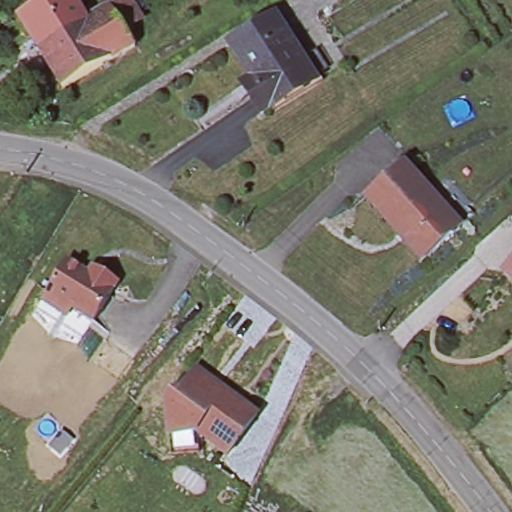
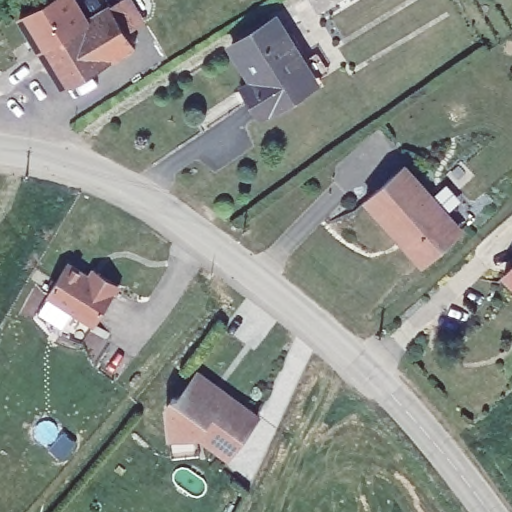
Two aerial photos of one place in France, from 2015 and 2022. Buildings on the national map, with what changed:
unchanged [(46,0),(74,0),(84,16),(86,20),(37,50),(17,17),(46,0)]
unchanged [(107,2),(112,0),(130,0),(140,16),(122,26),(133,44),(62,89),(37,50),(86,20),(84,16),(107,2)]
unchanged [(330,91),(279,122),(276,117),(267,123),(248,93),(258,88),(235,52),(280,25),(299,56),(305,52),(330,91)]
unchanged [(408,165),(438,197),(451,186),(478,217),(425,263),(369,199),(408,165)]
unchanged [(42,301),(47,293),(66,262),(88,276),(93,267),(120,283),(117,289),(95,322),(75,310),(70,319),(42,301)]
unchanged [(502,274),(512,264),(512,283),(502,274)]
unchanged [(228,452),(210,419),(169,433),(167,401),(172,392),(180,391),(192,373),(197,368),(225,388),(257,411),(228,452)]

